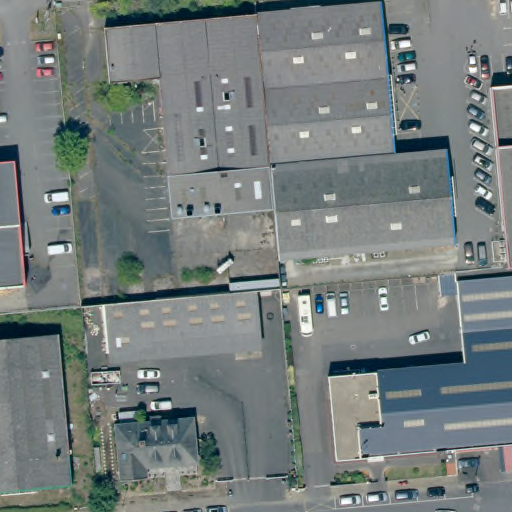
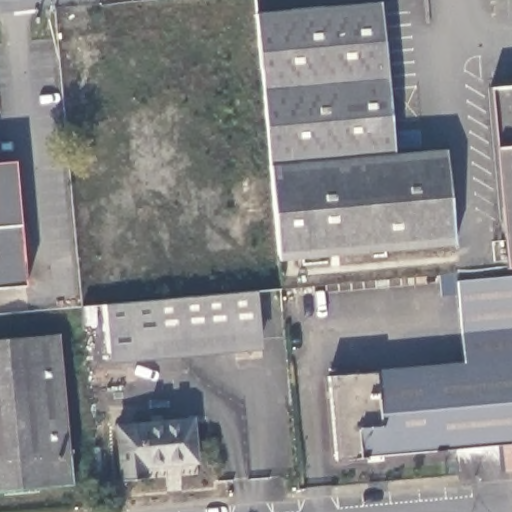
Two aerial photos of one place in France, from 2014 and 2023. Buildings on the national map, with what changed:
unchanged [(380,3),(395,155),(445,150),(454,244),(277,260),(273,211),(256,17),(256,15),(380,3)]
demolished [(273,211),(170,220),(157,79),(109,84),(104,30),(256,17),(273,211)]
unchanged [(512,87),(512,267),(505,268),(489,89),(512,87)]
unchanged [(0,166),(10,165),(15,224),(0,226),(0,166)]
unchanged [(21,224),(27,286),(0,288),(0,226),(15,224),(21,224)]
unchanged [(455,274),(456,294),(303,308),(301,288),(455,274)]
unchanged [(361,457),(336,459),(328,378),(463,364),(457,282),(512,277),(512,443),(361,456),(361,457)]
unchanged [(110,355),(105,305),(230,294),(229,287),(280,282),(281,290),(280,290),(256,292),(261,342),(110,355)]
unchanged [(72,484),(0,492),(0,341),(58,335),(72,484)]
unchanged [(262,351),(110,363),(110,355),(261,342),(262,351)]
unchanged [(193,421),(197,462),(146,467),(147,479),(122,481),(117,428),(193,421)]

